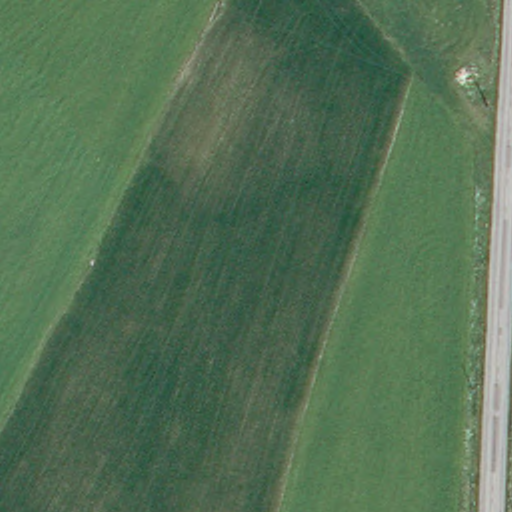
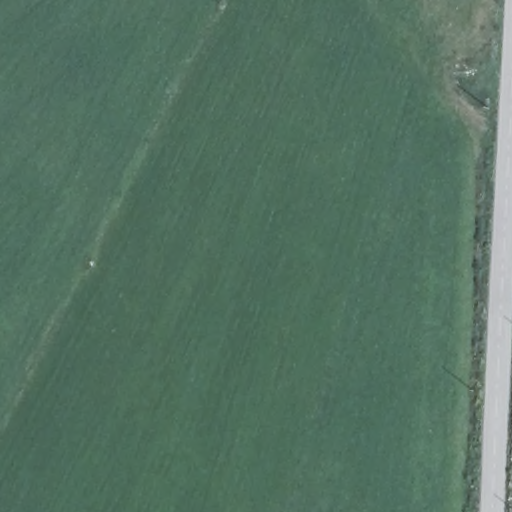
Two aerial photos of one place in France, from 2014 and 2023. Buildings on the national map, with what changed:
[]

